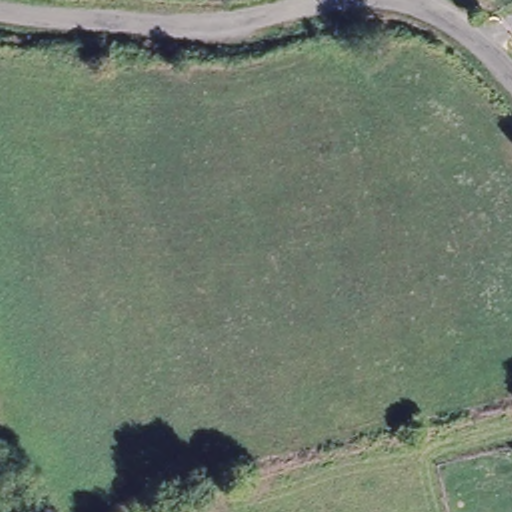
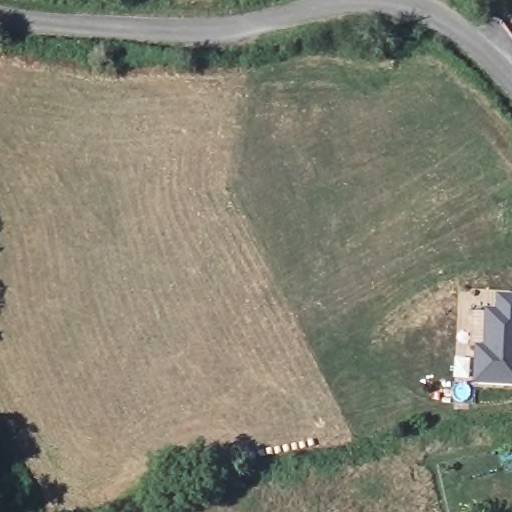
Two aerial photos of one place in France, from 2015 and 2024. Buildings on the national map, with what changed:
new [(494,295),(512,296),(512,384),(472,382),(471,311),(493,310),(494,295)]

